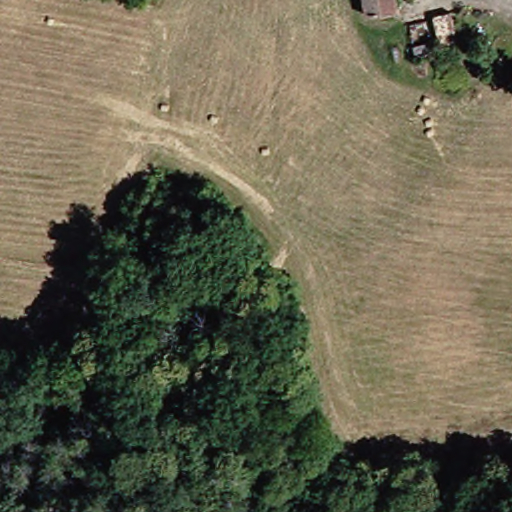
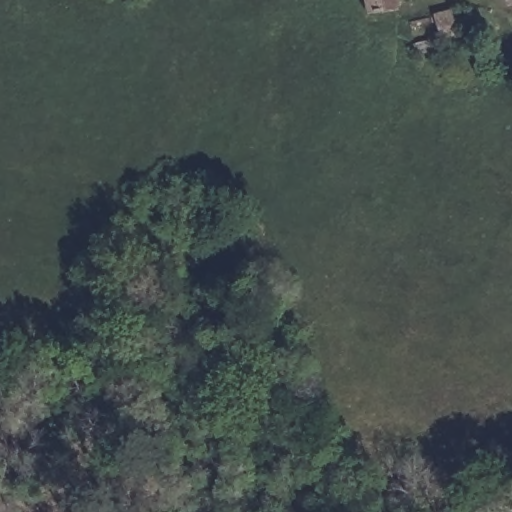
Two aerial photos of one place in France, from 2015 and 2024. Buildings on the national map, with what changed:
unchanged [(391,0),(392,5),(390,10),(360,14),(360,0),(391,0)]
unchanged [(453,0),(458,32),(430,36),(424,8),(453,0)]

